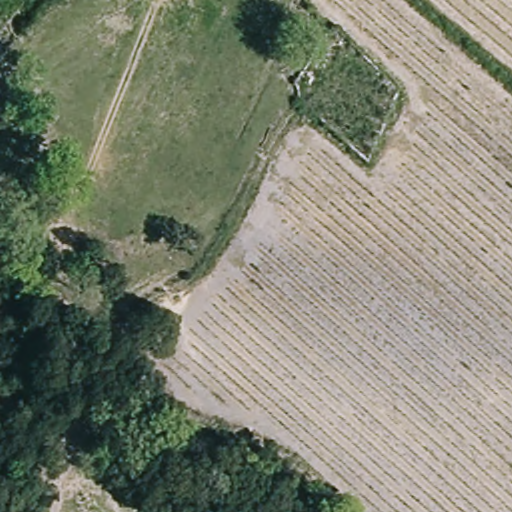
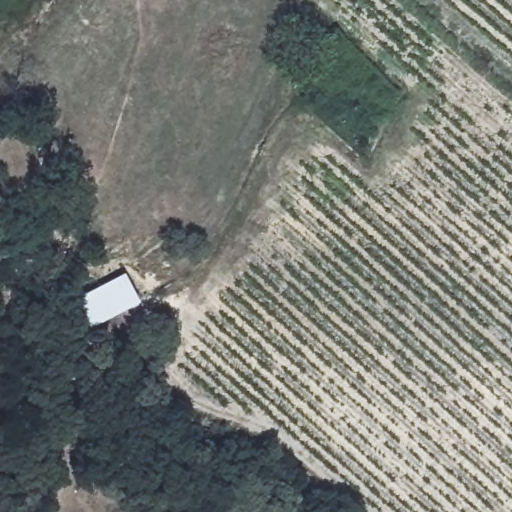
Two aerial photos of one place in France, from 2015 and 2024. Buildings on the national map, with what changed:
new [(93,328),(78,300),(125,275),(140,303),(93,328)]

